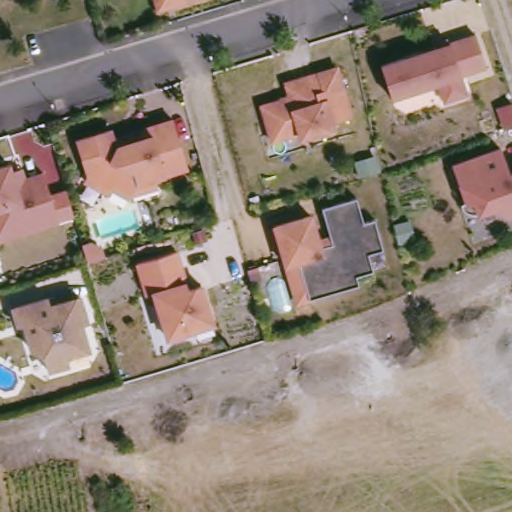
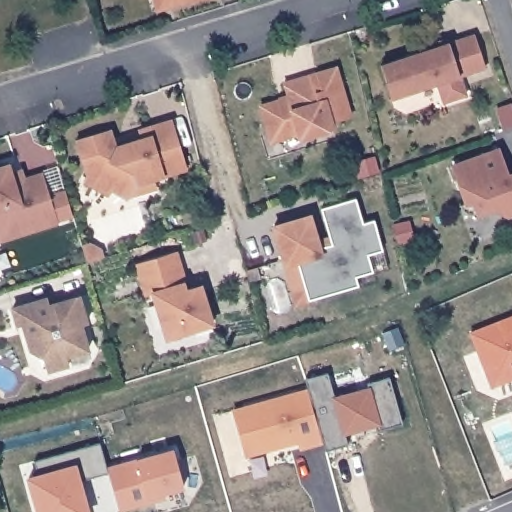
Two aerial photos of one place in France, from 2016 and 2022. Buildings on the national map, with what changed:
unchanged [(156,3),(155,0),(165,0),(156,3)]
unchanged [(175,6),(174,0),(195,0),(175,6)]
unchanged [(477,38),(486,71),(460,78),(466,98),(444,104),(438,85),(391,99),(381,66),(477,38)]
unchanged [(289,97),(285,83),(338,67),(352,117),(334,122),(336,128),(303,138),(301,133),(274,142),(263,105),(289,97)]
unchanged [(166,176),(138,185),(133,195),(115,187),(113,193),(86,181),(95,161),(81,154),(77,140),(111,130),(116,148),(142,140),(139,132),(173,122),(185,161),(188,170),(166,176)]
unchanged [(510,175),(512,174),(512,214),(508,215),(494,208),(478,213),(474,201),(467,203),(454,165),(501,149),(510,175)]
unchanged [(359,178),(355,164),(374,159),(379,172),(359,178)]
unchanged [(9,165),(13,175),(22,172),(24,180),(44,174),(59,223),(37,230),(0,241),(0,168),(9,165)]
unchanged [(286,266),(274,228),(310,216),(320,248),(333,244),(321,208),(354,198),(363,223),(374,220),(383,250),(369,254),(374,272),(356,277),(359,286),(319,298),(298,305),(286,266)]
unchanged [(101,251),(103,258),(88,263),(83,246),(89,244),(101,251)]
unchanged [(176,252),(188,290),(201,286),(210,314),(191,320),(194,330),(167,338),(153,293),(147,296),(137,263),(176,252)]
unchanged [(48,300),(50,307),(80,299),(88,326),(81,328),(88,353),(66,359),(69,367),(46,373),(43,358),(30,352),(25,333),(29,332),(28,325),(18,328),(13,309),(48,300)]
new [(489,378),(471,332),(512,316),(512,379),(499,383),(489,378)]
new [(304,379),(328,373),(334,397),(368,388),(366,382),(389,376),(402,423),(379,429),(378,423),(344,433),(348,443),(324,450),(304,379)]
new [(233,416),(249,412),(248,407),(308,390),(322,441),(300,448),(298,440),(273,447),(272,444),(243,452),(233,416)]
new [(80,481),(88,512),(38,512),(28,478),(38,476),(34,461),(100,443),(108,473),(80,481)]
new [(184,487),(148,497),(149,502),(119,510),(108,468),(173,450),(184,487)]

